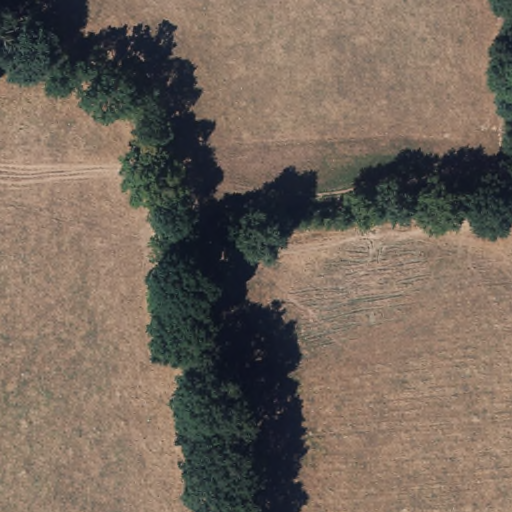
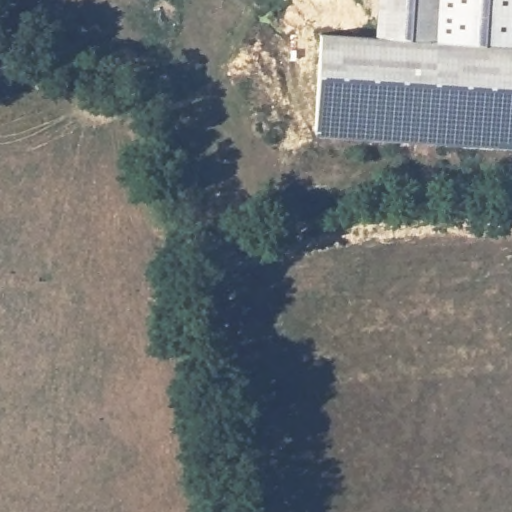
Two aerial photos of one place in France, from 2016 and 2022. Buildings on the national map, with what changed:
new [(320,31),(373,35),(375,0),(512,0),(512,146),(313,133),(320,31)]

